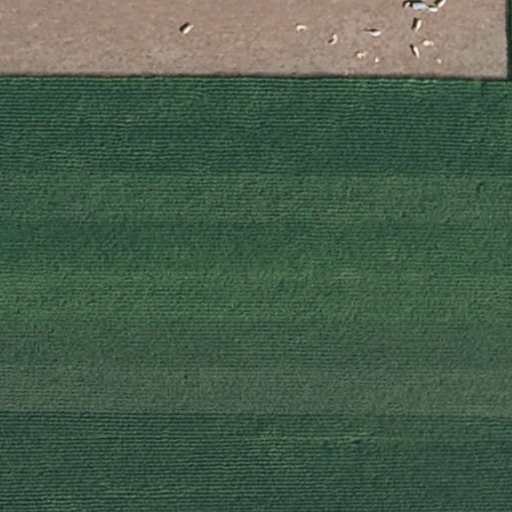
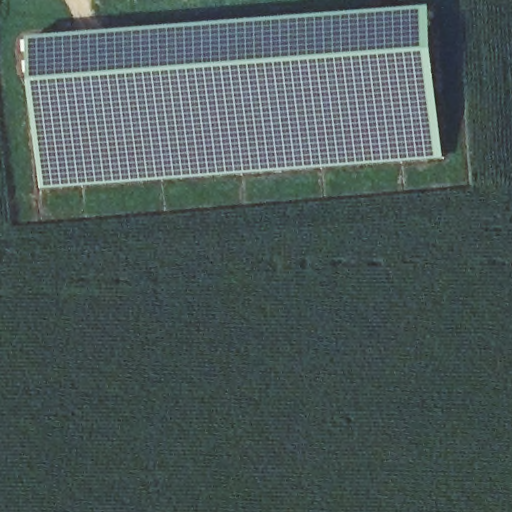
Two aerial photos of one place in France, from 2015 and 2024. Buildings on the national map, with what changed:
new [(42,188),(30,38),(433,6),(446,157),(42,188)]

